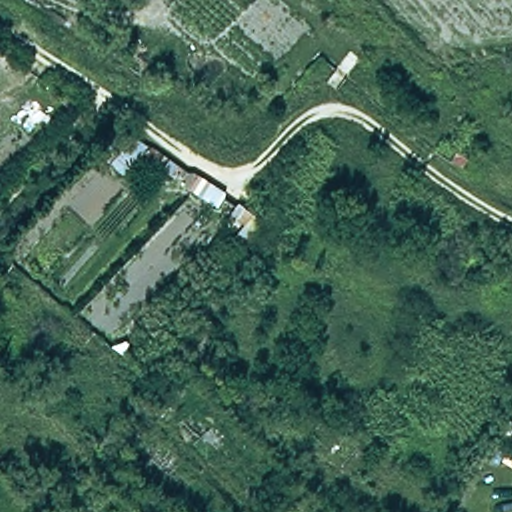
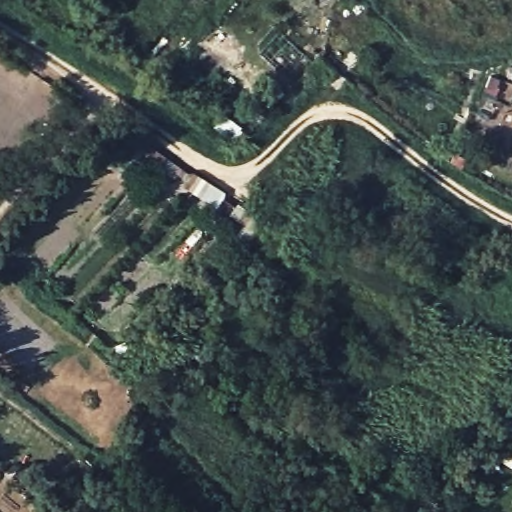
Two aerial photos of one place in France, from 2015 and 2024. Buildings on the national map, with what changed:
unchanged [(145,150),(124,175),(90,147),(110,122),(145,150)]
unchanged [(184,169),(174,182),(145,161),(155,148),(184,169)]
unchanged [(267,218),(247,251),(232,243),(242,227),(227,217),(239,200),(267,218)]
unchanged [(510,408),(512,410),(512,446),(495,436),(510,408)]

